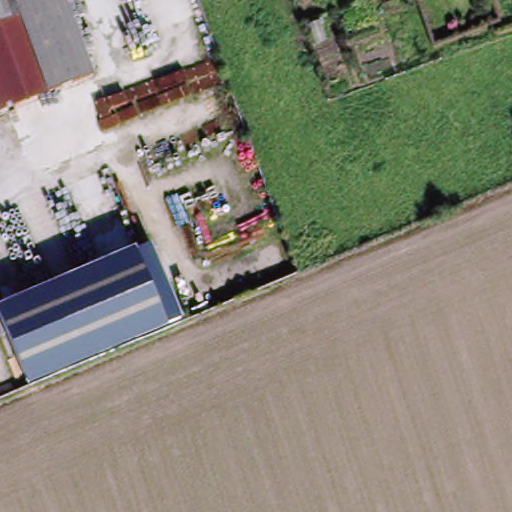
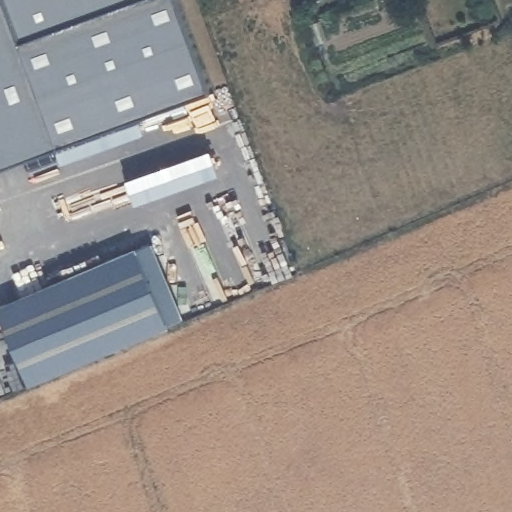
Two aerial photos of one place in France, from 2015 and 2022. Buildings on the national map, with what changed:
new [(131,127),(0,174),(0,0),(178,0),(213,97),(131,127)]
unchanged [(29,382),(0,308),(0,303),(135,243),(137,247),(152,241),(183,317),(29,382)]

